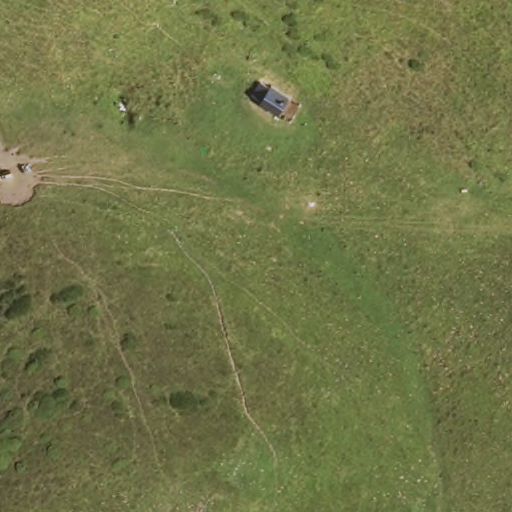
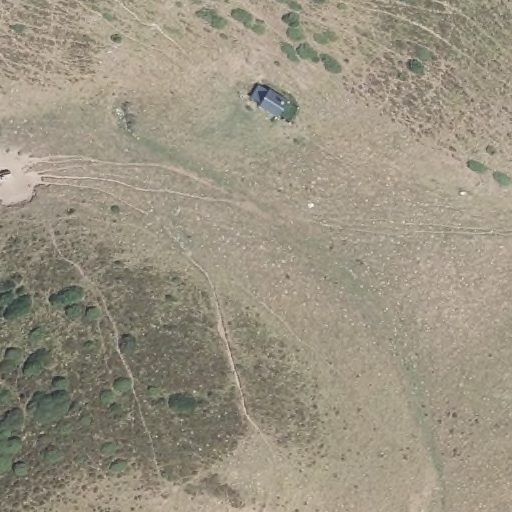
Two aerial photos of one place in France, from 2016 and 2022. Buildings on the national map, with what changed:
unchanged [(277,121),(266,115),(257,111),(261,102),(252,98),(258,86),(287,101),(277,121)]

